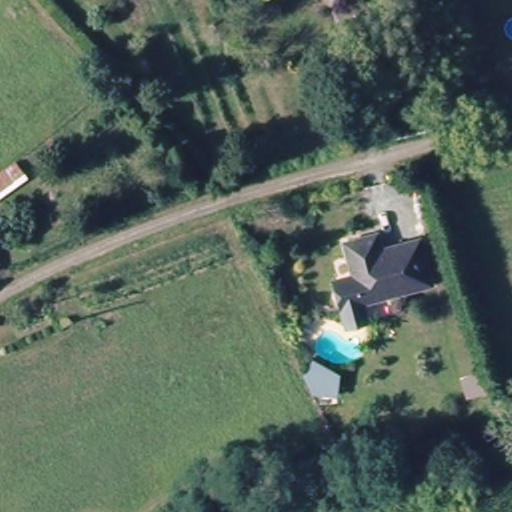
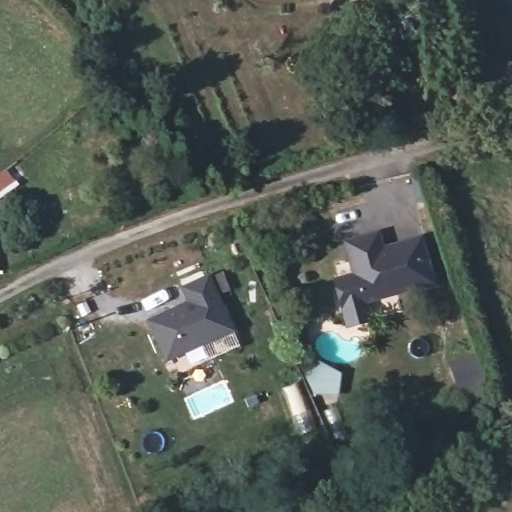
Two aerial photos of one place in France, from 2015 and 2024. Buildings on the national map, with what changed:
unchanged [(22,178),(0,200),(0,175),(10,165),(22,178)]
unchanged [(340,275),(360,270),(351,237),(379,230),(382,242),(427,231),(439,278),(367,297),(371,316),(353,321),(347,302),(340,275)]
new [(233,332),(165,363),(147,321),(184,304),(179,289),(208,277),(222,272),(230,291),(219,296),(233,332)]
new [(312,396),(298,361),(312,358),(340,373),(337,395),(312,396)]

